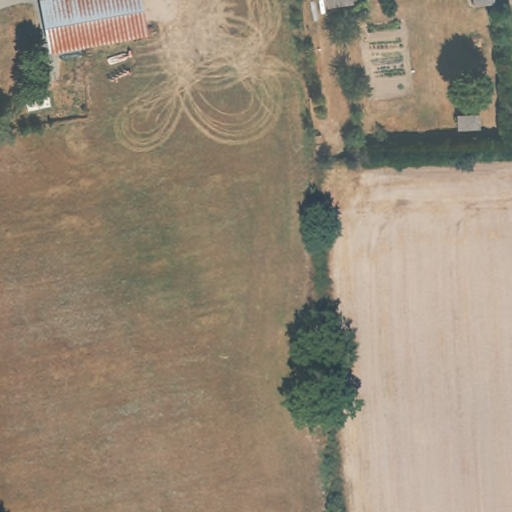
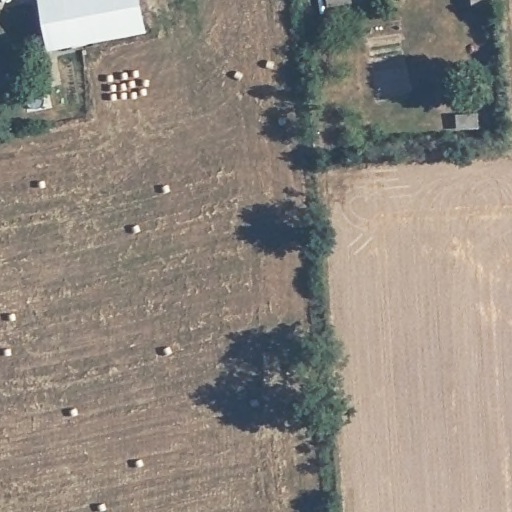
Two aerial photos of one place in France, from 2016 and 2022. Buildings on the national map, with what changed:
unchanged [(141,34),(46,50),(39,0),(136,0),(141,34)]
unchanged [(493,2),(471,5),(471,0),(493,0),(493,2)]

